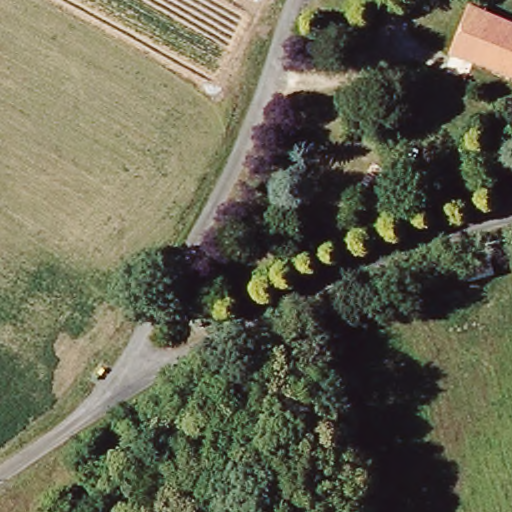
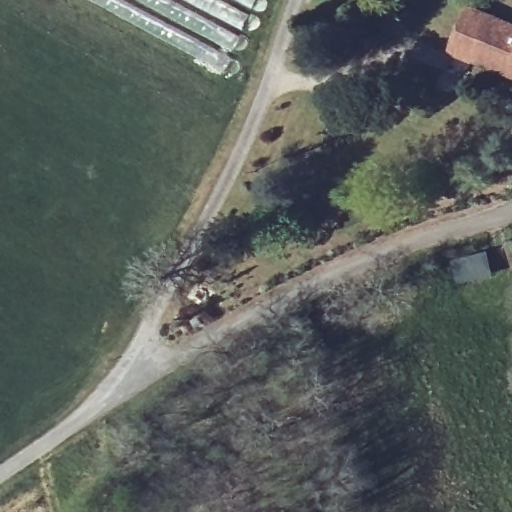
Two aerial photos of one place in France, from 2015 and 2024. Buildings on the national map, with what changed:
demolished [(224,57),(120,0),(216,0),(246,16),(224,57)]
unchanged [(452,53),(470,4),(512,21),(512,78),(452,53)]

